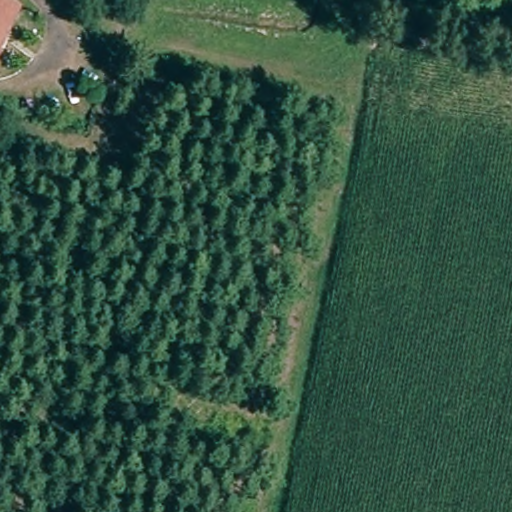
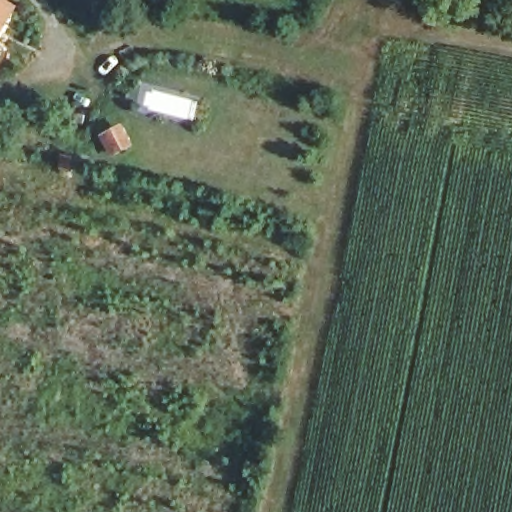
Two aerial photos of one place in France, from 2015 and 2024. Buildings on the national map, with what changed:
unchanged [(24,12),(0,62),(0,0),(3,0),(24,12)]

